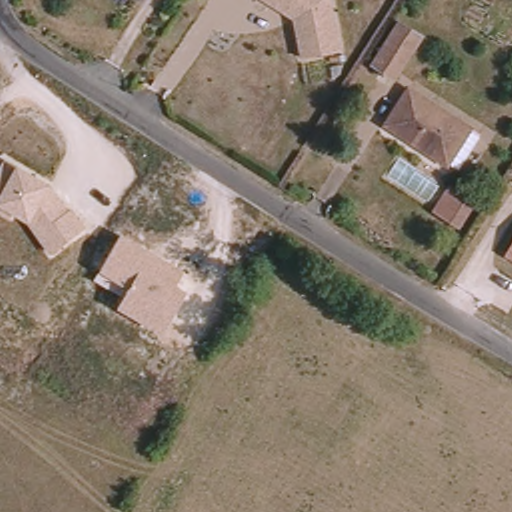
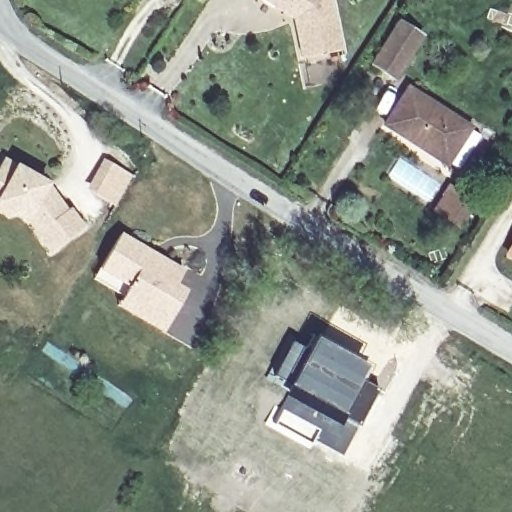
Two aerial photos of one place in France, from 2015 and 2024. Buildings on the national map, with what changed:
unchanged [(344,53),(306,60),(297,15),(287,8),(285,12),(265,0),(333,0),(344,53)]
unchanged [(397,82),(376,70),(402,29),(425,42),(397,82)]
unchanged [(449,167),(390,129),(410,95),(470,133),(449,167)]
unchanged [(69,210),(72,207),(85,227),(49,252),(25,215),(14,211),(10,216),(0,211),(0,165),(4,158),(53,186),(69,210)]
unchanged [(456,224),(433,209),(448,186),(470,200),(456,224)]
unchanged [(122,234),(185,270),(175,285),(185,290),(161,330),(118,305),(130,286),(100,270),(122,234)]
unchanged [(506,253),(512,242),(512,257),(506,253)]
new [(358,425),(341,455),(312,440),(310,444),(271,420),(289,390),(285,387),(286,385),(270,375),(290,340),(306,349),(313,335),(369,366),(361,380),(378,390),(358,425)]

